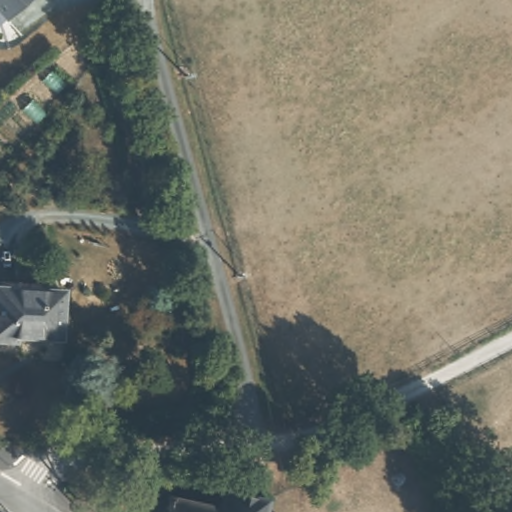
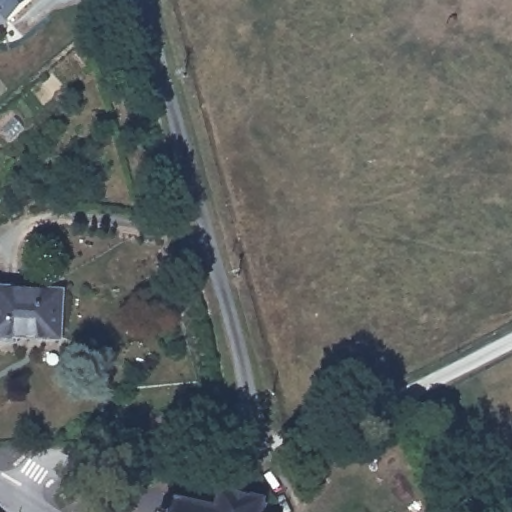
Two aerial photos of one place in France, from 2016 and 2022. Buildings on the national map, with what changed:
unchanged [(7,20),(0,11),(0,0),(31,0),(7,20)]
unchanged [(62,335),(16,332),(16,339),(0,338),(0,285),(62,288),(62,335)]
unchanged [(220,500),(225,483),(268,492),(272,498),(269,512),(177,512),(182,493),(220,500)]
unchanged [(1,512),(0,512),(0,511),(1,512)]

